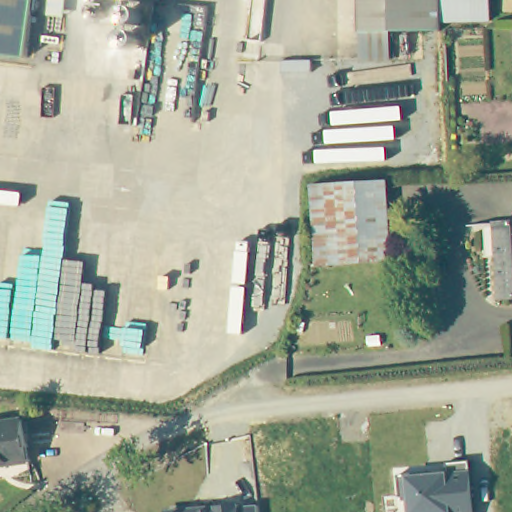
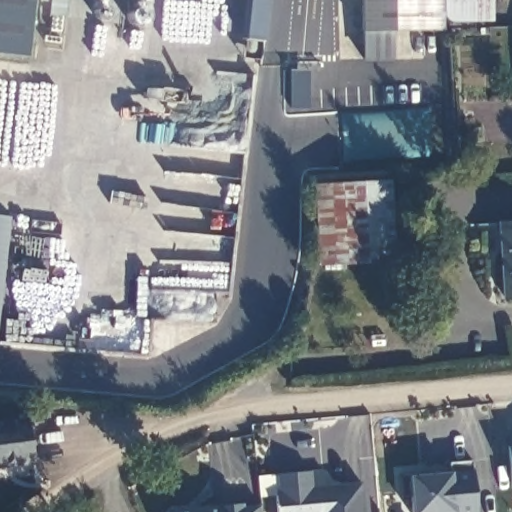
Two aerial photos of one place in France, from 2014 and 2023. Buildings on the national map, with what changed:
unchanged [(65,12),(35,9),(30,53),(0,50),(0,0),(66,0),(65,12)]
unchanged [(360,29),(358,0),(487,0),(487,23),(457,24),(443,24),(442,29),(360,29)]
unchanged [(456,81),(436,81),(433,46),(453,45),(456,81)]
unchanged [(388,180),(390,254),(321,255),(319,182),(388,180)]
unchanged [(512,215),(512,292),(500,292),(494,216),(512,215)]
new [(0,216),(10,217),(0,294),(0,216)]
unchanged [(31,461),(0,465),(0,421),(25,418),(31,461)]
new [(511,484),(507,447),(512,447),(512,484),(511,484)]
unchanged [(408,512),(408,496),(400,496),(399,475),(447,471),(446,462),(468,461),(473,512),(408,512)]
new [(323,484),(362,480),(365,512),(277,512),(274,473),(321,468),(323,484)]
unchanged [(181,510),(181,507),(239,502),(240,506),(258,505),(258,512),(166,512),(166,511),(181,510)]

